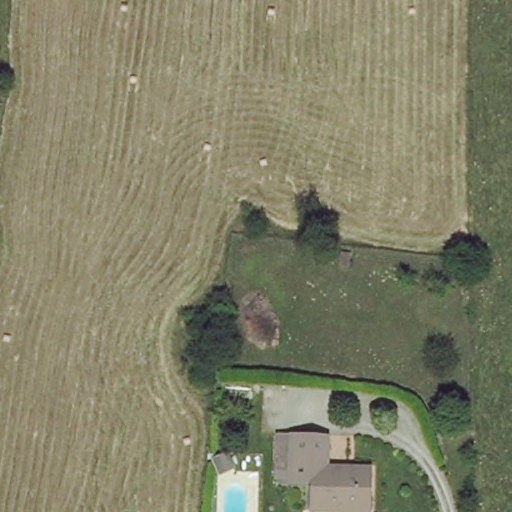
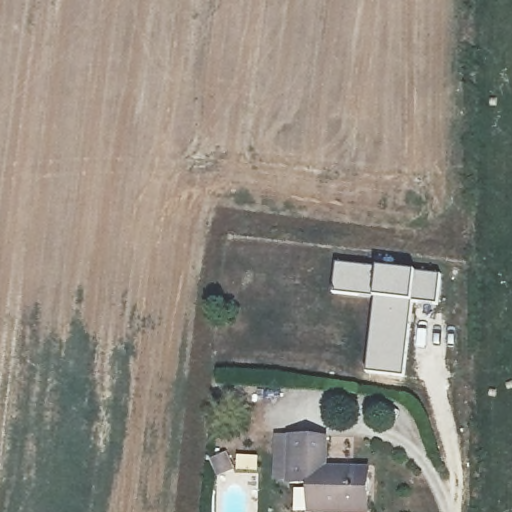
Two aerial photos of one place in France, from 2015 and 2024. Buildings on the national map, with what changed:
new [(337,262),(443,273),(439,306),(414,303),(375,298),(332,293),(337,262)]
new [(375,298),(414,303),(405,379),(365,374),(375,298)]
unchanged [(329,468),(374,469),(373,512),(313,509),(314,482),(294,482),(295,462),(282,462),(282,437),(295,437),(330,438),(329,468)]

